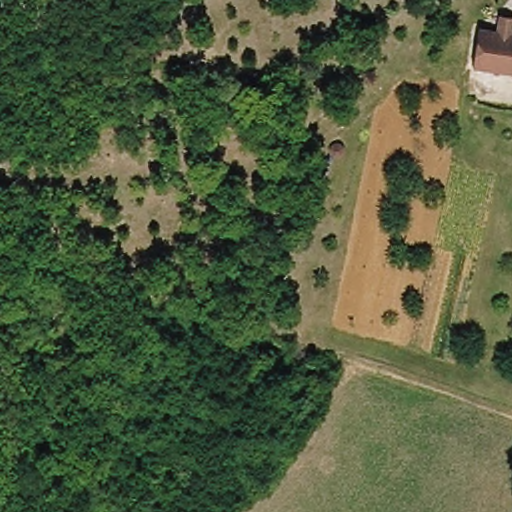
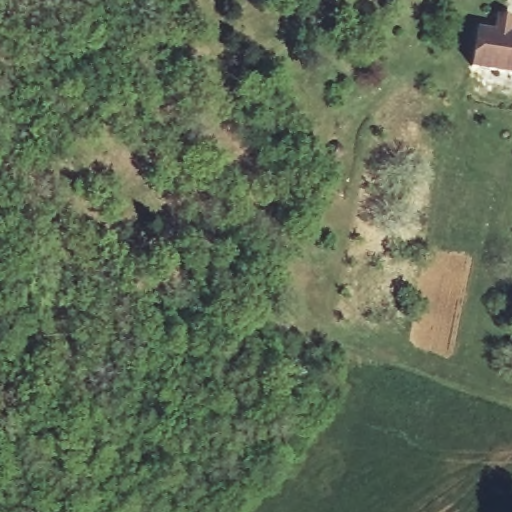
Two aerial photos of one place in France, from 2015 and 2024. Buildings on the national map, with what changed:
unchanged [(498,16),(512,18),(512,30),(512,33),(512,72),(470,65),(476,27),(496,30),(498,16)]

